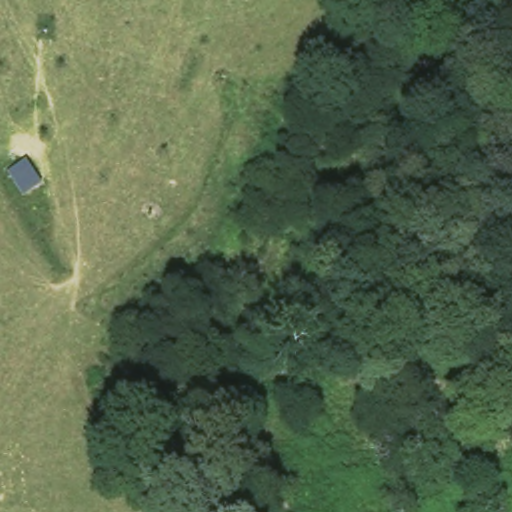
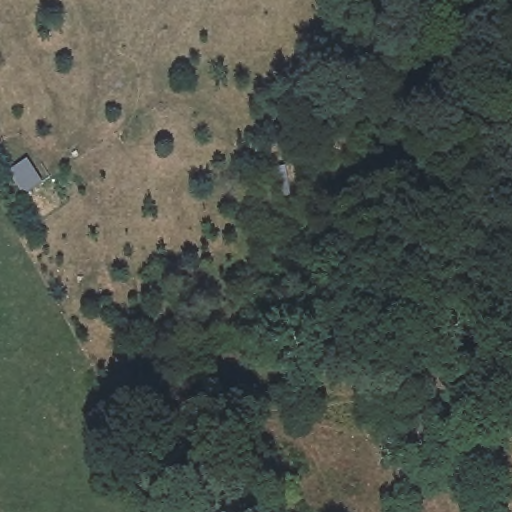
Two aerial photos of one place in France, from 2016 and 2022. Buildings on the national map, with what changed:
[]

